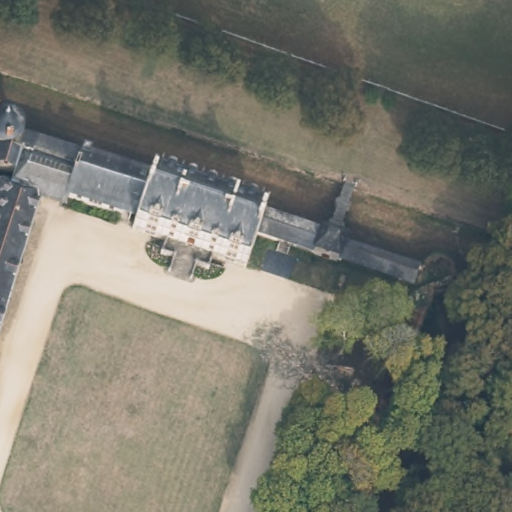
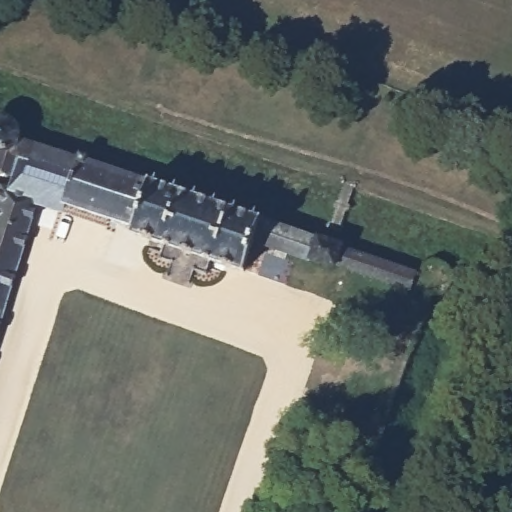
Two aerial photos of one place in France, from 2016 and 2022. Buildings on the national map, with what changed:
unchanged [(18,162),(11,181),(0,178),(0,112),(3,112),(6,112),(8,114),(11,115),(13,116),(16,118),(17,120),(19,122),(20,125),(21,128),(21,131),(20,134),(20,137),(19,139),(36,146),(30,166),(18,162)]
unchanged [(34,204),(7,195),(11,181),(18,162),(30,166),(36,146),(75,160),(61,207),(59,212),(34,204)]
unchanged [(351,258),(342,282),(286,261),(281,269),(269,266),(271,255),(254,248),(243,277),(209,266),(202,284),(187,278),(182,290),(158,281),(163,268),(148,263),(153,249),(124,238),(126,232),(61,207),(75,160),(351,258)]
unchanged [(0,302),(0,192),(7,195),(34,204),(0,302)]
unchanged [(414,281),(406,305),(342,282),(351,258),(414,281)]

